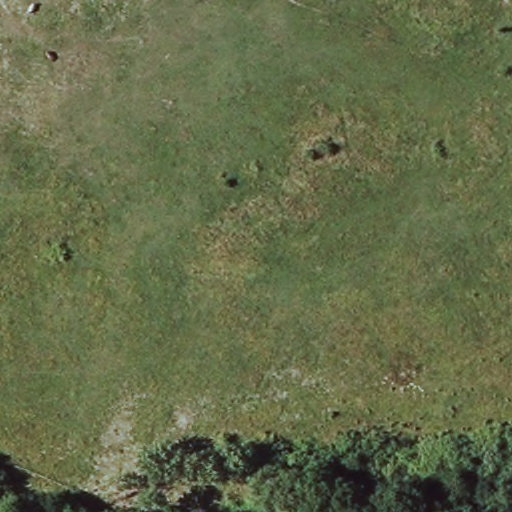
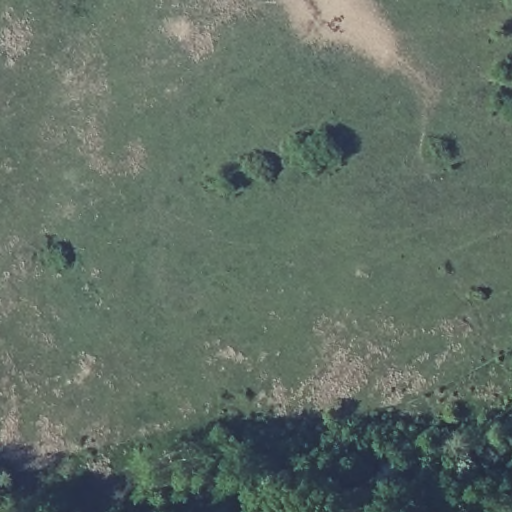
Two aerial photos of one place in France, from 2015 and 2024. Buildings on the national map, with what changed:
[]

